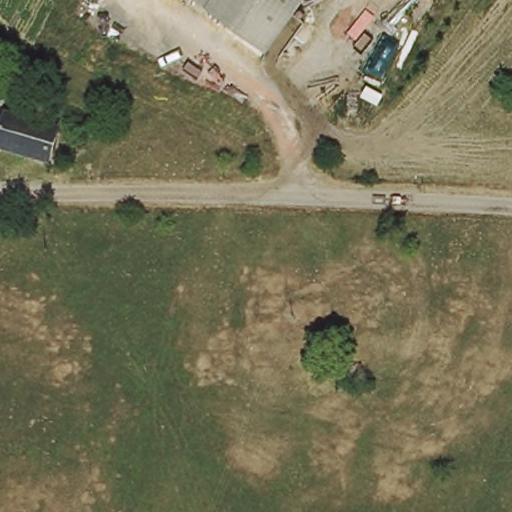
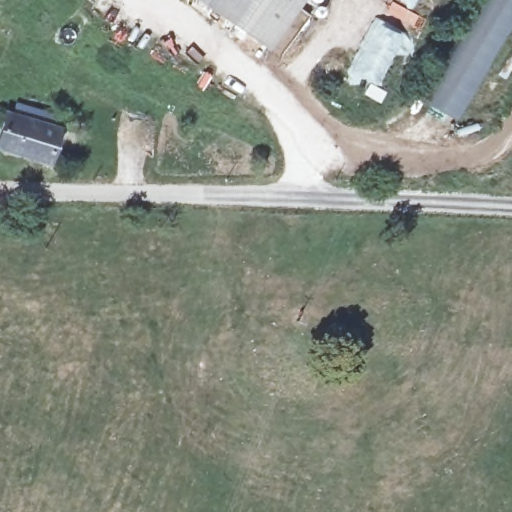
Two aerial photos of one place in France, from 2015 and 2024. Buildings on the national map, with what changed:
unchanged [(204,0),(301,0),(265,47),(204,0)]
new [(422,97),(477,0),(512,0),(512,29),(460,119),(422,97)]
unchanged [(5,122),(13,122),(13,110),(52,112),(51,124),(60,125),(58,160),(5,158),(5,122)]

